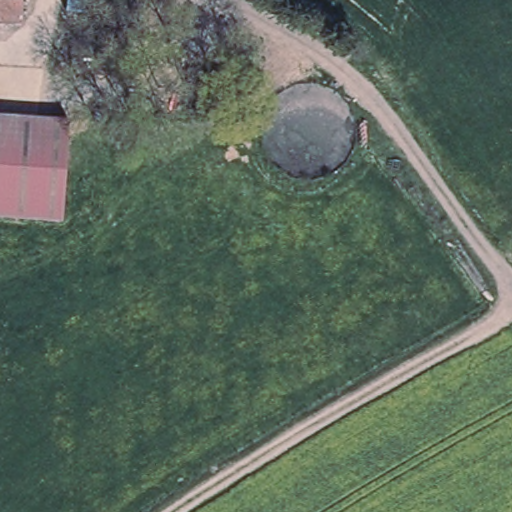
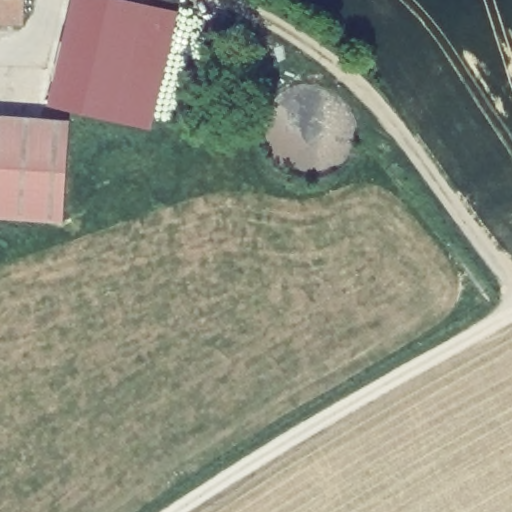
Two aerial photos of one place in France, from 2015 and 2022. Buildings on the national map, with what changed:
unchanged [(27,27),(0,26),(0,0),(30,0),(27,27)]
new [(152,130),(47,105),(71,0),(131,0),(178,11),(152,130)]
unchanged [(70,120),(62,220),(35,218),(0,215),(0,115),(36,118),(70,120)]

